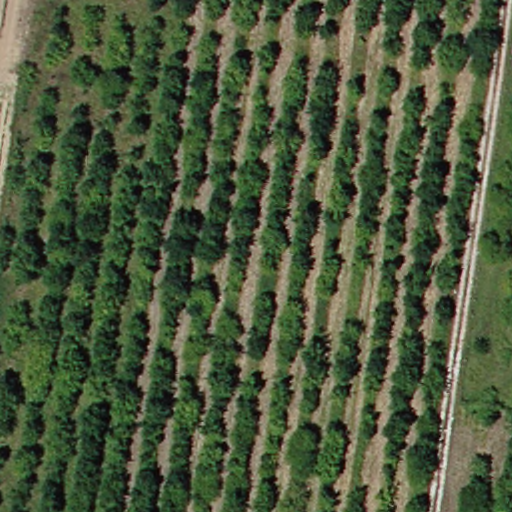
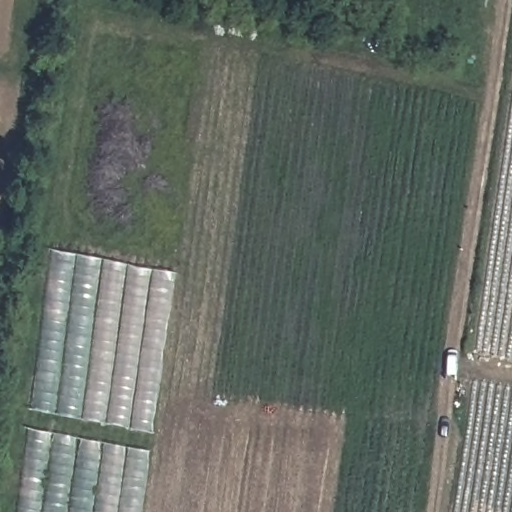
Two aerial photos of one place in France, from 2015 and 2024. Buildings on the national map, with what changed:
new [(153,433),(31,411),(53,250),(177,274),(153,433)]
new [(18,512),(29,430),(150,451),(142,512),(18,512)]

